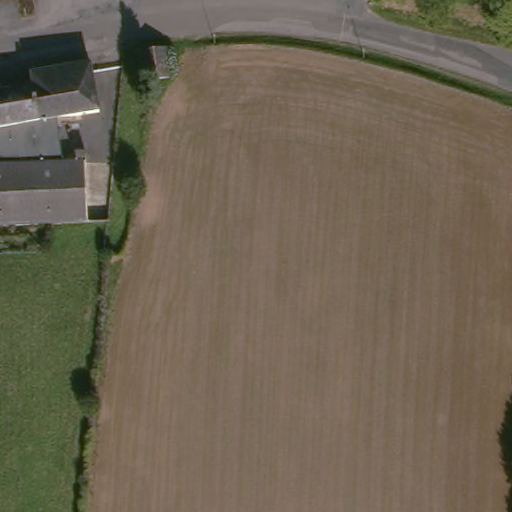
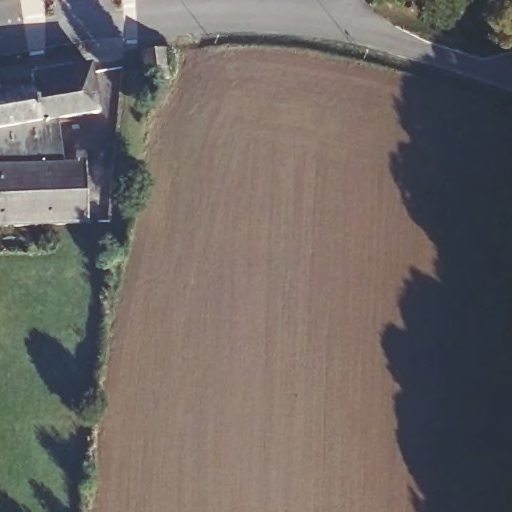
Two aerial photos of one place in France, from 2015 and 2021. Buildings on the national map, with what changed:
unchanged [(112,0),(126,0),(126,10),(112,10),(112,0)]
unchanged [(40,85),(37,72),(95,65),(100,111),(63,116),(0,129),(0,93),(40,85)]
unchanged [(168,71),(172,102),(161,104),(144,107),(136,71),(167,65),(168,71)]
unchanged [(82,218),(0,227),(0,129),(63,116),(67,157),(76,156),(75,148),(86,147),(85,185),(108,186),(106,216),(82,218)]

